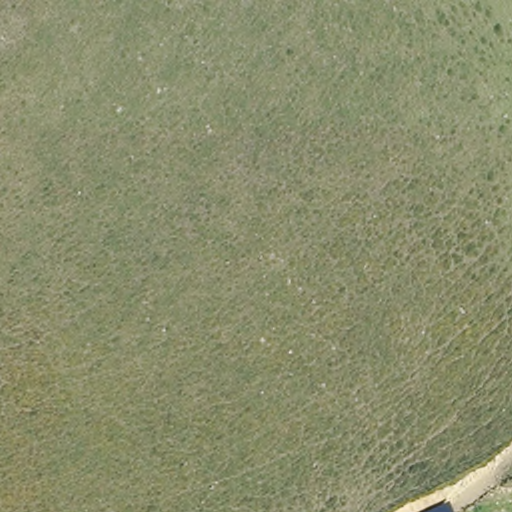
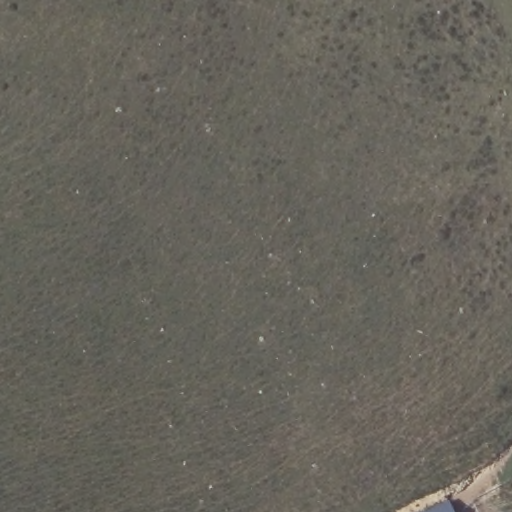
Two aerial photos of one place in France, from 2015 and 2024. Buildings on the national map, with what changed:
unchanged [(448,502),(453,512),(430,512),(448,502)]

